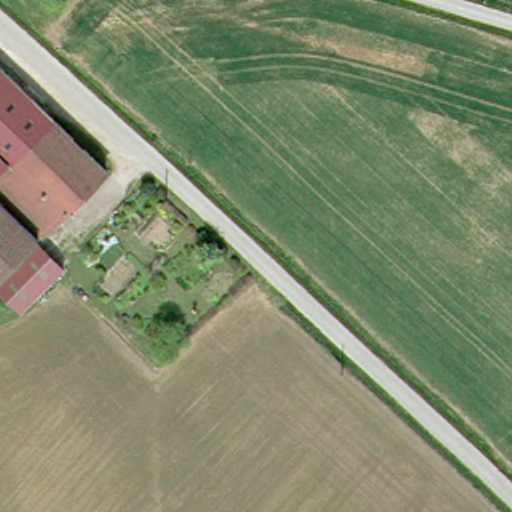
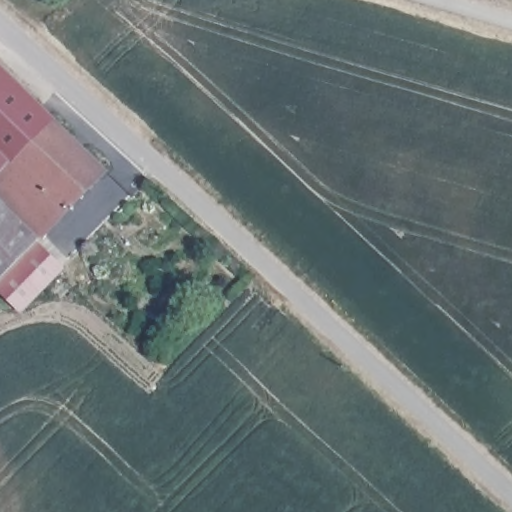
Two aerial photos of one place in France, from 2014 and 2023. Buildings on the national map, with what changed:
unchanged [(0,70),(114,166),(58,230),(0,178),(0,70)]
unchanged [(47,243),(6,289),(5,291),(0,287),(0,178),(58,230),(47,243)]
unchanged [(47,243),(76,268),(35,315),(6,289),(47,243)]

